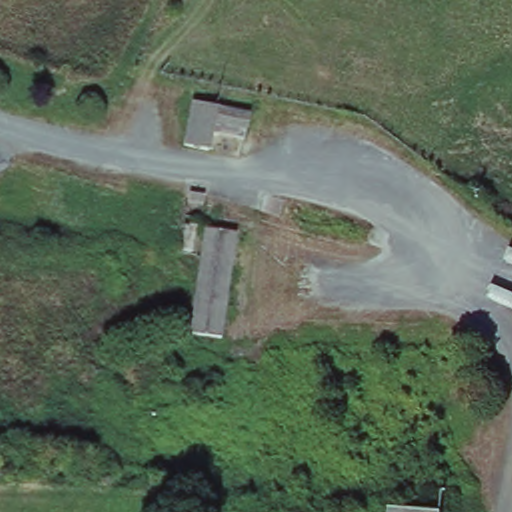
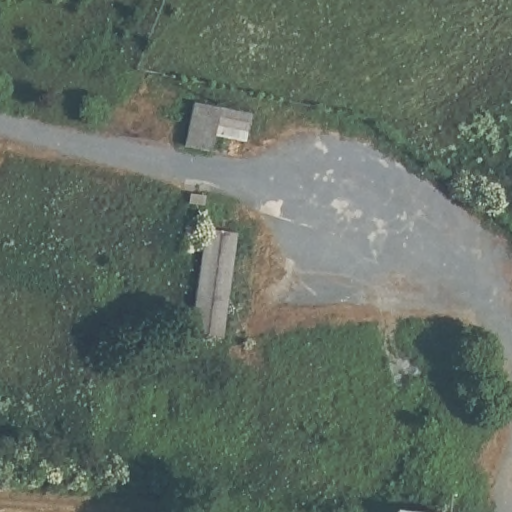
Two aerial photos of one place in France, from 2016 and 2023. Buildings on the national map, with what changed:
unchanged [(255,112),(249,140),(217,131),(212,148),(189,141),(199,96),(255,112)]
unchanged [(214,197),(209,206),(194,201),(196,193),(214,197)]
unchanged [(243,231),(226,339),(192,332),(209,225),(243,231)]
unchanged [(396,509),(424,512),(396,512),(396,509)]

